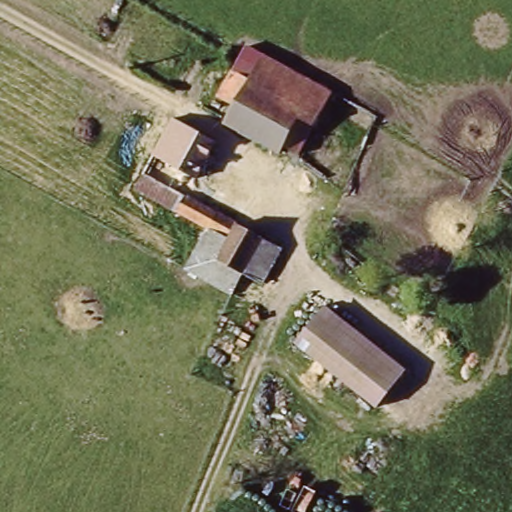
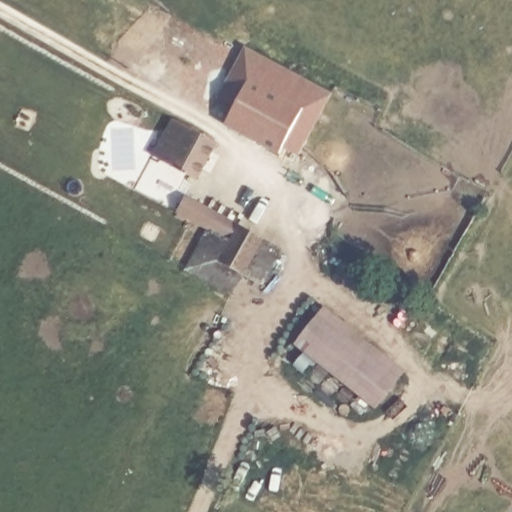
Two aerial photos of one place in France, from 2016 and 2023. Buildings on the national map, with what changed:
unchanged [(335,101),(305,147),(285,133),(276,146),(225,114),(235,97),(220,85),(234,62),(252,74),(263,56),(335,101)]
unchanged [(146,166),(176,114),(222,139),(192,193),(146,166)]
unchanged [(231,261),(252,273),(238,298),(190,272),(214,229),(181,212),(192,193),(250,227),(231,261)]
unchanged [(252,273),(231,261),(250,227),(295,253),(275,286),(252,273)]
unchanged [(297,341),(323,305),(407,367),(377,402),(297,341)]

